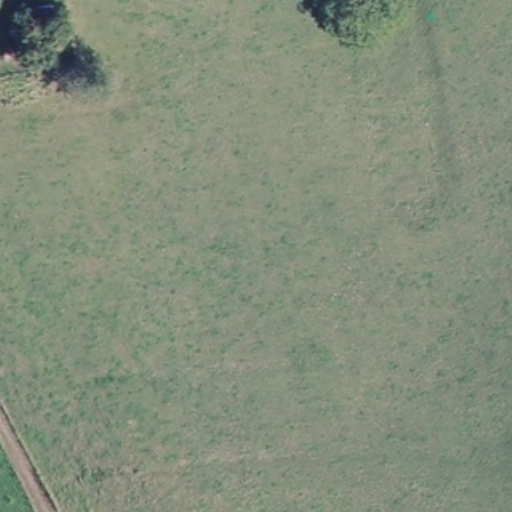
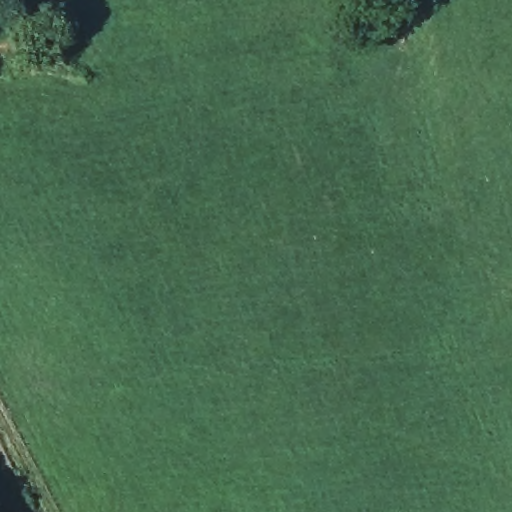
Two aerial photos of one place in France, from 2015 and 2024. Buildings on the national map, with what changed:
[]

